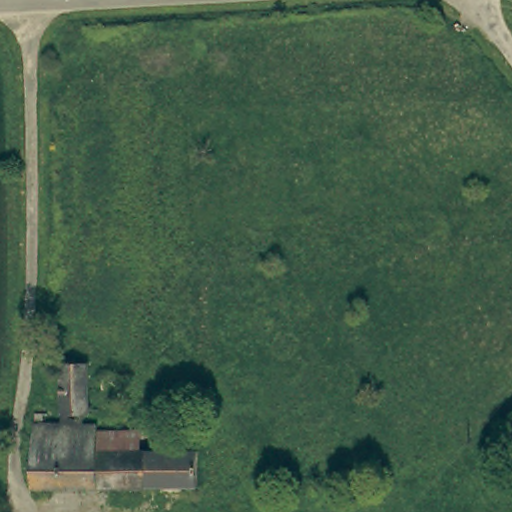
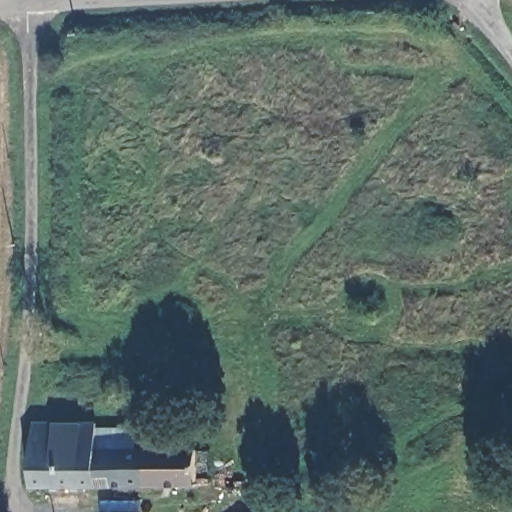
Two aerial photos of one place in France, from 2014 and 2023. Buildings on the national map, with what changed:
unchanged [(39,413),(49,413),(49,425),(64,425),(65,364),(91,366),(89,413),(89,416),(82,416),(83,426),(103,426),(103,433),(103,451),(103,485),(36,484),(39,413)]
unchanged [(103,451),(202,453),(202,486),(103,485),(103,451)]

